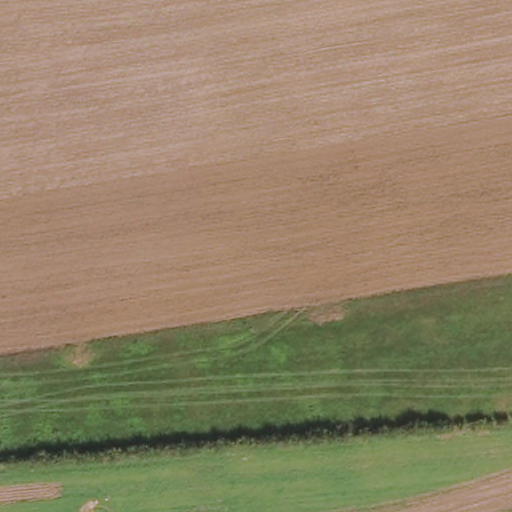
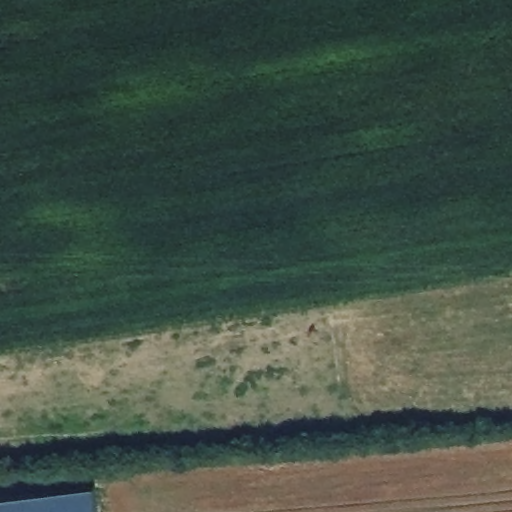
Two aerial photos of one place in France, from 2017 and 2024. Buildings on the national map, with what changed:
new [(95,486),(99,512),(0,512),(0,498),(95,486)]

